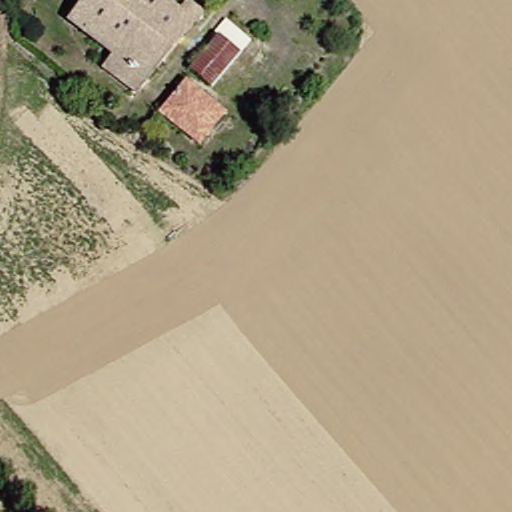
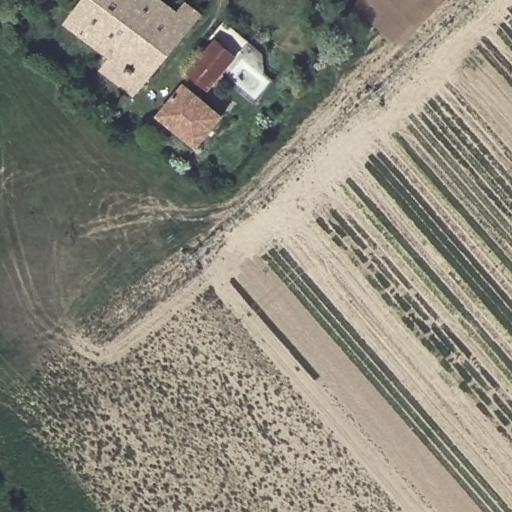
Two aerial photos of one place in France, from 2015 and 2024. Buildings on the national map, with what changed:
unchanged [(154,0),(171,14),(177,7),(187,16),(130,88),(99,65),(107,53),(64,20),(79,0),(154,0)]
unchanged [(207,39),(227,54),(202,84),(184,69),(207,39)]
unchanged [(214,111),(190,142),(151,112),(175,81),(214,111)]

